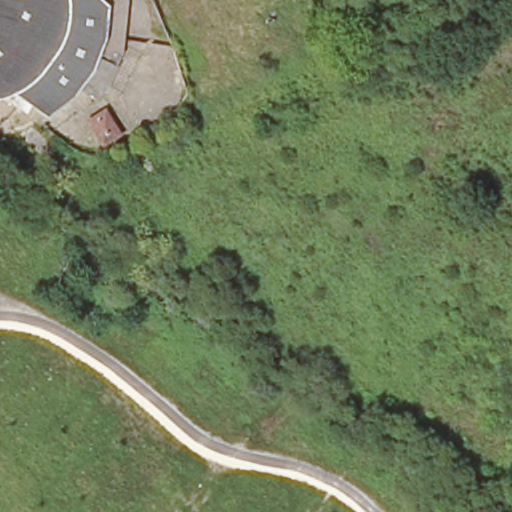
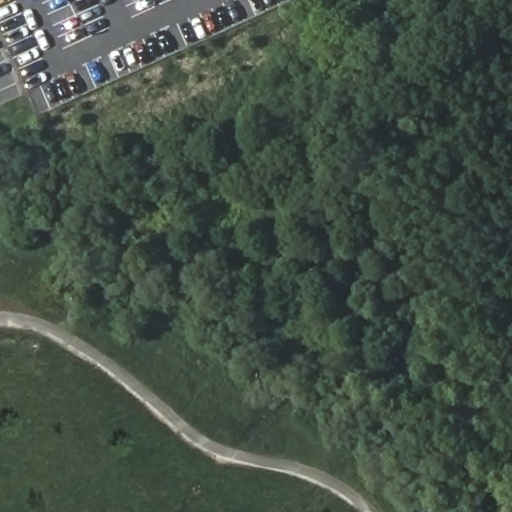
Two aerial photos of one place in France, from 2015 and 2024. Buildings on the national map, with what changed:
demolished [(106,0),(107,2),(105,21),(100,35),(98,49),(90,63),(69,91),(40,112),(5,86),(0,87),(0,0),(106,0)]

